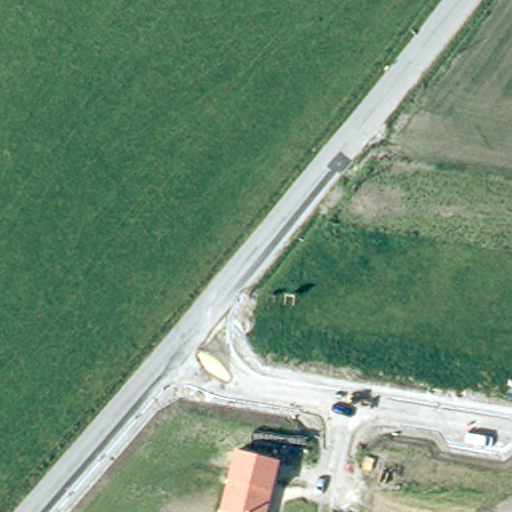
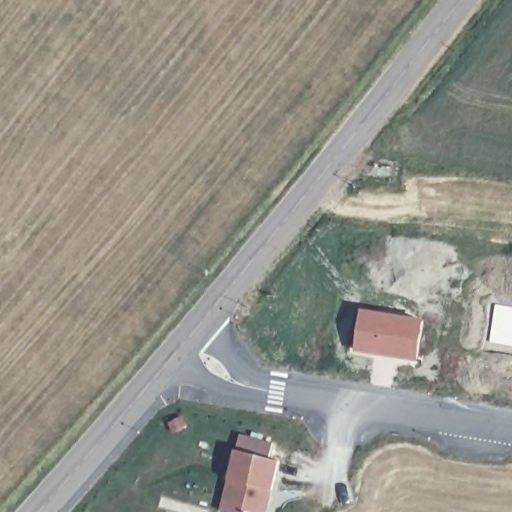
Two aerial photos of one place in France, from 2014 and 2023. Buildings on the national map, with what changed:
new [(360,311),(422,321),(415,359),(355,349),(360,311)]
unchanged [(237,449),(280,461),(272,492),(267,512),(231,512),(222,509),(229,478),(237,449)]

